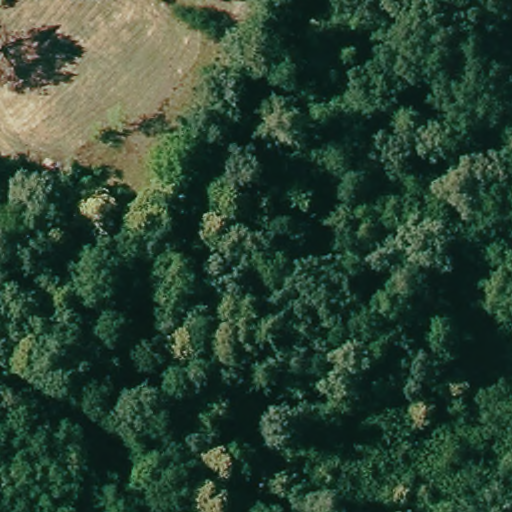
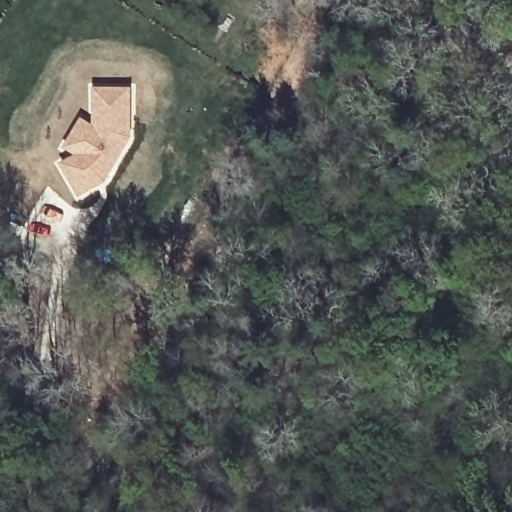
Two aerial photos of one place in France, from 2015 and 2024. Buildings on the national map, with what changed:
new [(81,195),(63,165),(80,155),(67,147),(84,120),(96,128),(96,90),(132,90),(131,137),(105,182),(97,186),(81,195)]

